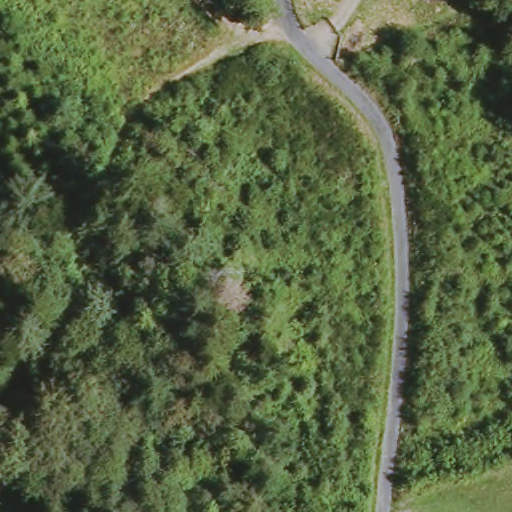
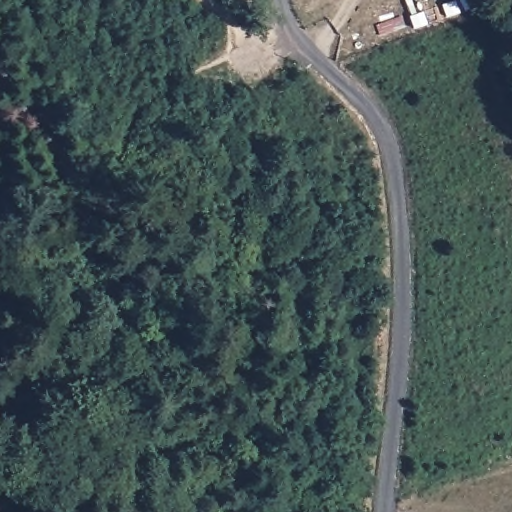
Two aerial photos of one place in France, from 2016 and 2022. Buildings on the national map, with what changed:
[]

